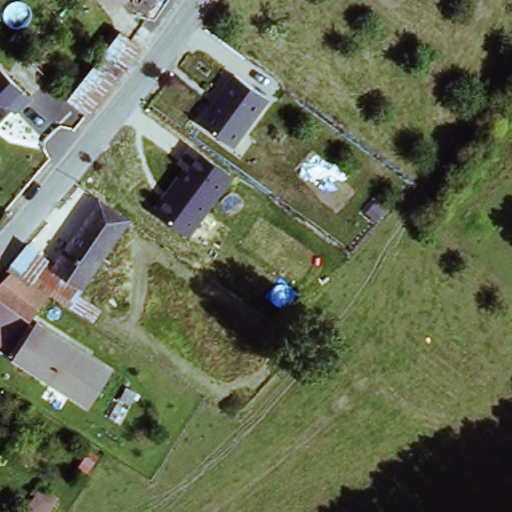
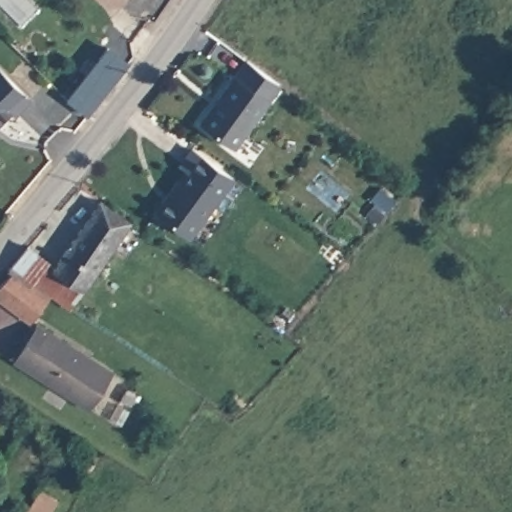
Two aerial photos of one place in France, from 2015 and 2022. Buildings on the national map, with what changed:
unchanged [(82,113),(65,98),(72,89),(119,35),(135,48),(129,56),(82,113)]
unchanged [(0,122),(0,65),(32,93),(0,122)]
unchanged [(234,151),(197,125),(229,77),(267,103),(234,151)]
unchanged [(185,169),(180,165),(192,147),(235,179),(189,238),(154,208),(185,169)]
unchanged [(125,221),(72,289),(49,271),(100,203),(125,221)]
unchanged [(23,248),(43,265),(40,269),(70,290),(77,295),(70,307),(69,306),(52,295),(30,323),(0,303),(0,279),(10,266),(11,264),(23,248)]
unchanged [(215,328),(207,323),(215,313),(222,318),(215,328)]
unchanged [(92,405),(17,356),(39,323),(114,372),(92,405)]

